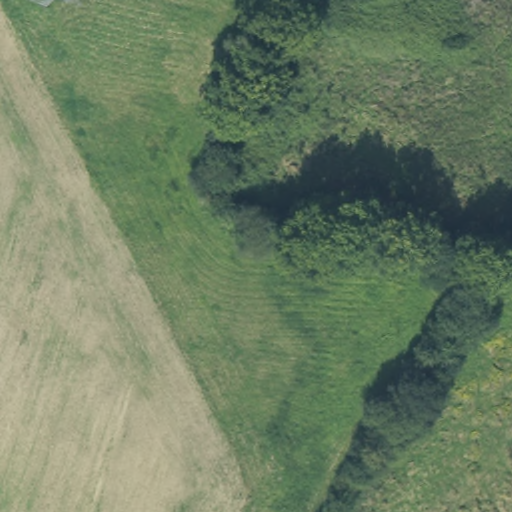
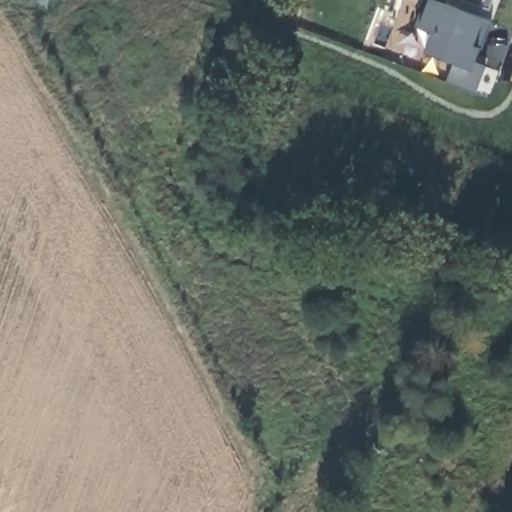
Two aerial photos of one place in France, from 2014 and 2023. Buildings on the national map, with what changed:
new [(481,20),(490,24),(479,48),(474,63),(484,67),(475,93),(445,82),(452,64),(423,54),(430,34),(418,29),(411,19),(428,0),(429,0),(481,20)]
new [(488,11),(458,0),(492,0),(488,11)]

